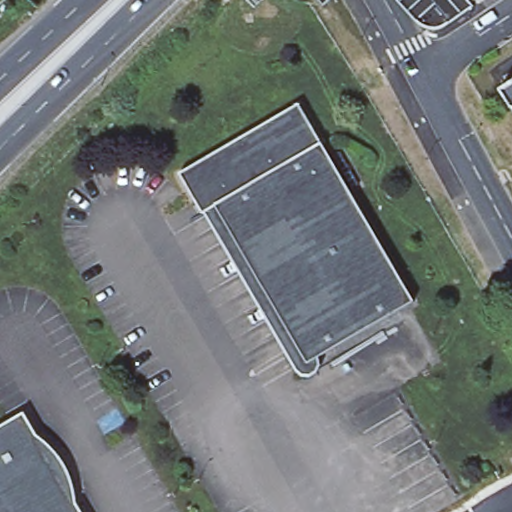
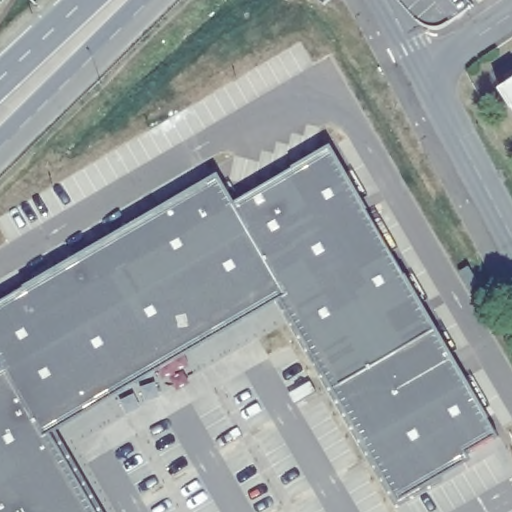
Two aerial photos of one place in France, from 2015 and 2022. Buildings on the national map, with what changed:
unchanged [(498,85),(512,76),(512,105),(498,85)]
demolished [(401,307),(293,369),(202,211),(197,201),(181,208),(165,176),(288,111),(401,307)]
new [(0,359),(0,303),(220,174),(235,203),(331,146),(500,436),(470,455),(472,461),(445,476),(447,482),(396,510),(276,303),(57,429),(104,512),(0,512),(0,372),(6,369),(0,359)]
demolished [(82,512),(0,512),(0,425),(23,411),(82,512)]

